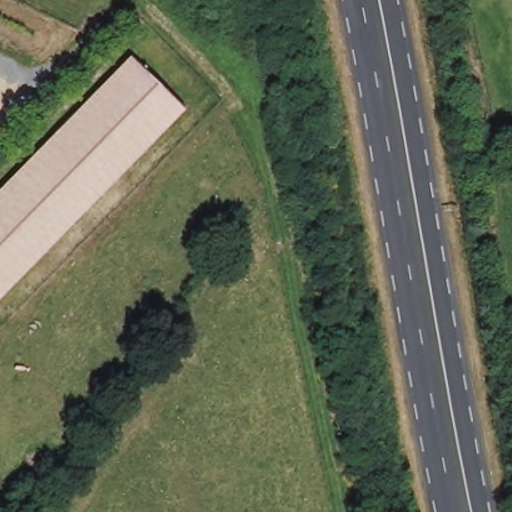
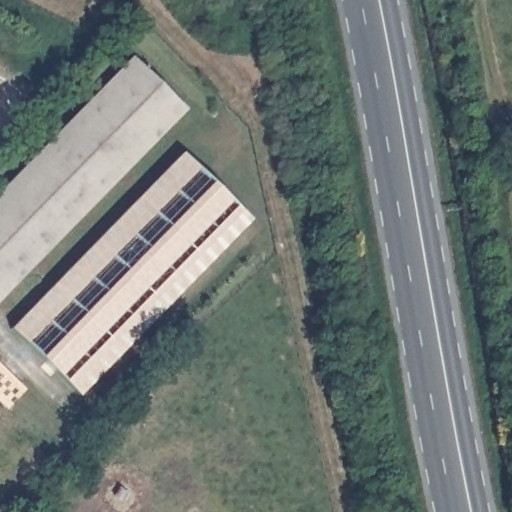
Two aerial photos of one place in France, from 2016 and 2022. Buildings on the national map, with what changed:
unchanged [(185,110),(0,299),(0,190),(130,57),(185,110)]
new [(185,141),(254,207),(85,383),(17,318),(185,141)]

